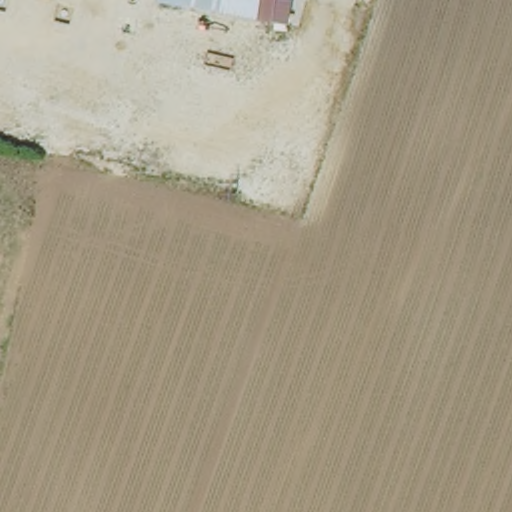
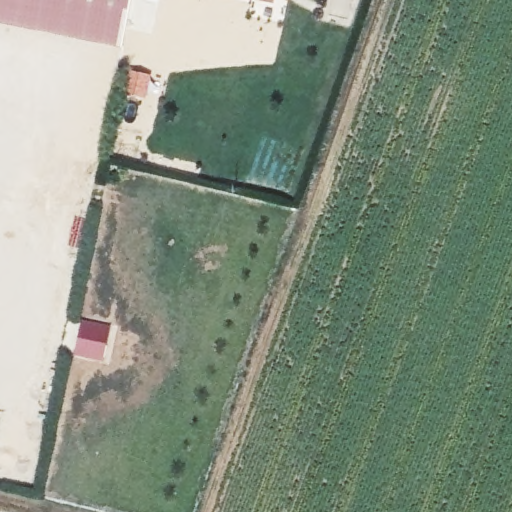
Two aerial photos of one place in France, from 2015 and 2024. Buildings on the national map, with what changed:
new [(130,0),(128,11),(125,11),(119,47),(0,23),(0,0),(130,0)]
demolished [(214,0),(290,0),(288,13),(260,9),(214,0)]
new [(256,0),(274,0),(273,3),(256,0)]

